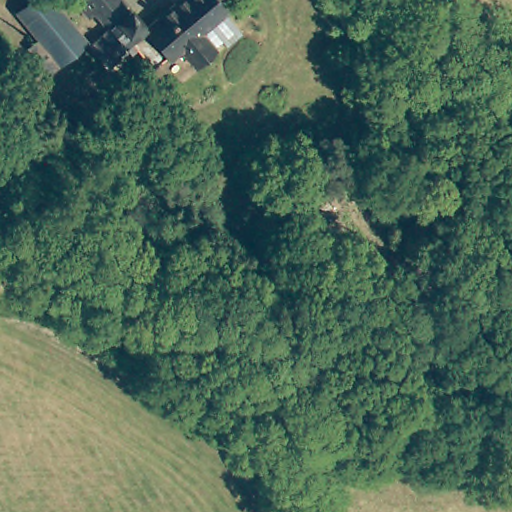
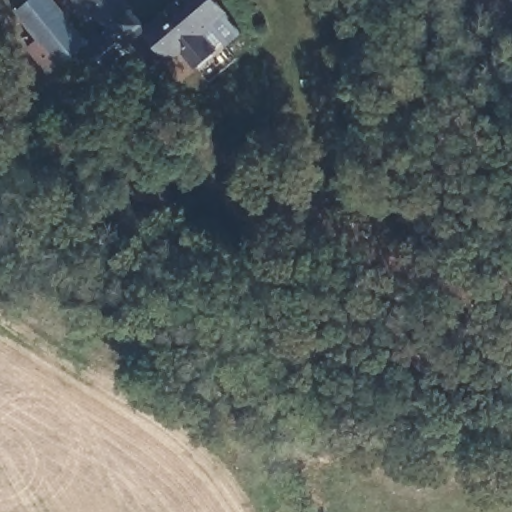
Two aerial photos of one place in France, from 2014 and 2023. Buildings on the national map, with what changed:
unchanged [(59,59),(18,9),(28,0),(57,0),(86,37),(59,59)]
unchanged [(224,0),(228,4),(204,26),(219,42),(201,60),(185,43),(175,53),(172,50),(161,60),(130,26),(122,33),(131,43),(110,62),(91,40),(111,22),(96,5),(89,12),(78,0),(125,0),(129,6),(145,24),(174,0),(224,0)]

